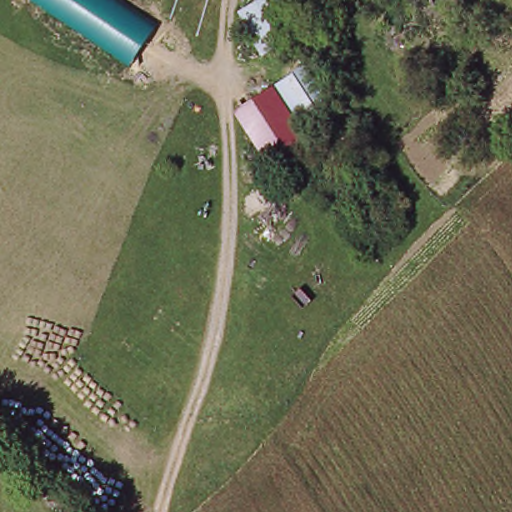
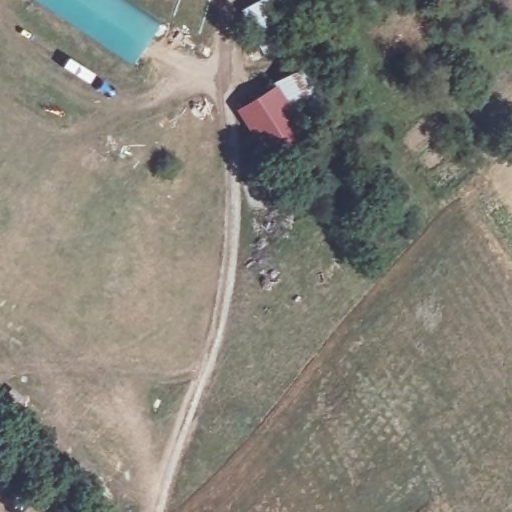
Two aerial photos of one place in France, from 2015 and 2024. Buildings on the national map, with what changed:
unchanged [(155,26),(131,65),(35,0),(115,0),(155,26)]
unchanged [(268,54),(247,15),(270,0),(301,0),(315,25),(268,54)]
unchanged [(310,62),(330,96),(300,117),(310,132),(267,159),(237,110),(310,62)]

